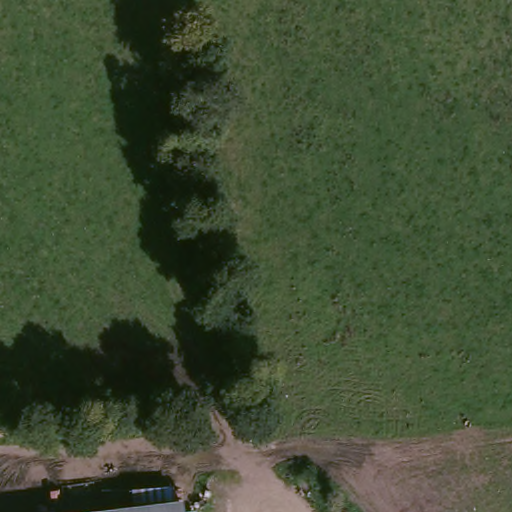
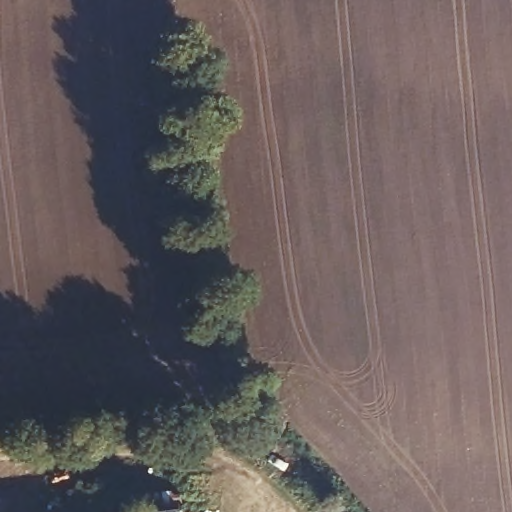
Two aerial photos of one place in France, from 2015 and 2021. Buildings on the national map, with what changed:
unchanged [(168,512),(180,511),(180,512),(168,512)]

